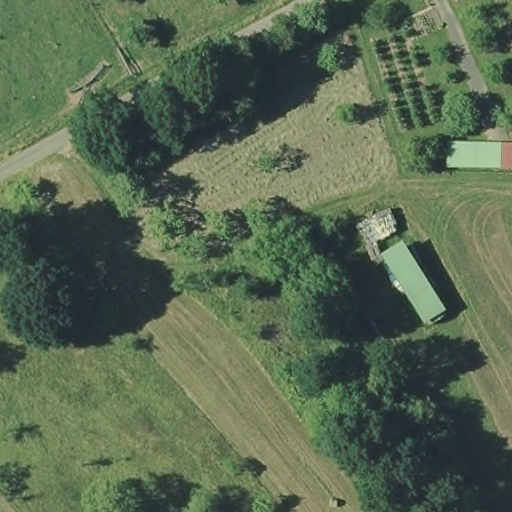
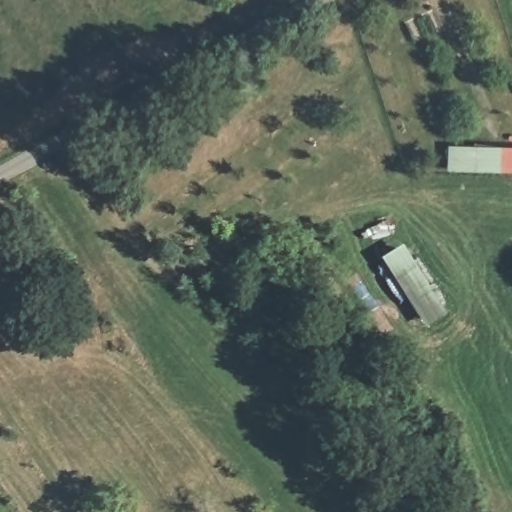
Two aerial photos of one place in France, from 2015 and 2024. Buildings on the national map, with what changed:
unchanged [(512,149),(512,178),(445,175),(445,148),(512,149)]
unchanged [(372,246),(356,216),(385,200),(401,231),(372,246)]
unchanged [(408,301),(393,308),(375,276),(388,268),(385,262),(407,249),(448,319),(427,330),(408,301)]

